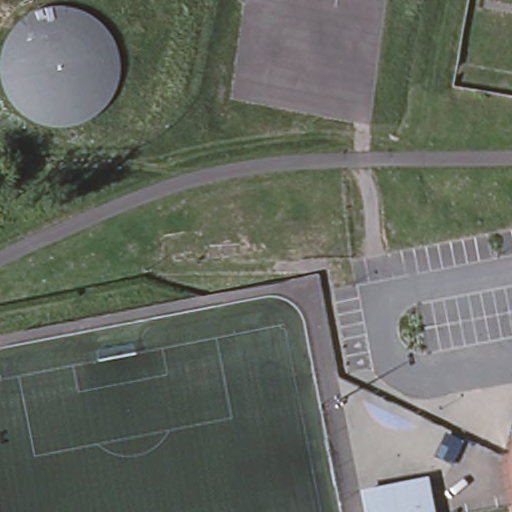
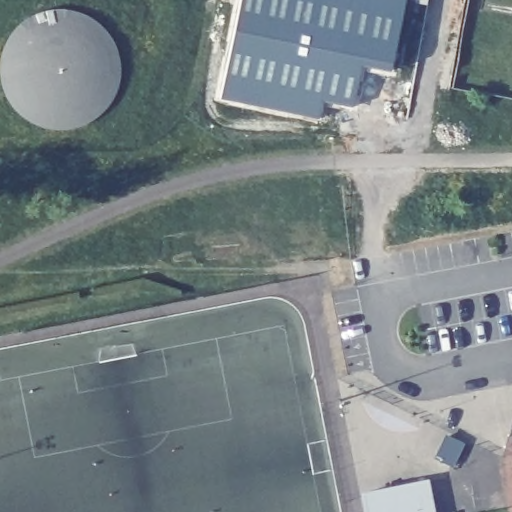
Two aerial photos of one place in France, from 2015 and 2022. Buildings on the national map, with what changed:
new [(408,0),(395,59),(367,53),(357,95),(328,89),(324,107),(225,86),(244,0),(408,0)]
unchanged [(438,512),(364,512),(360,488),(430,476),(438,512)]

